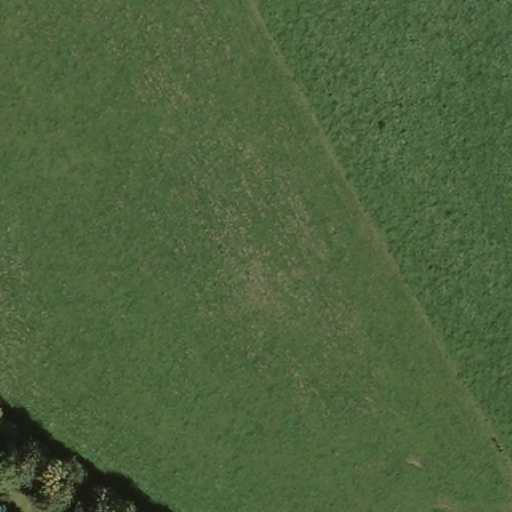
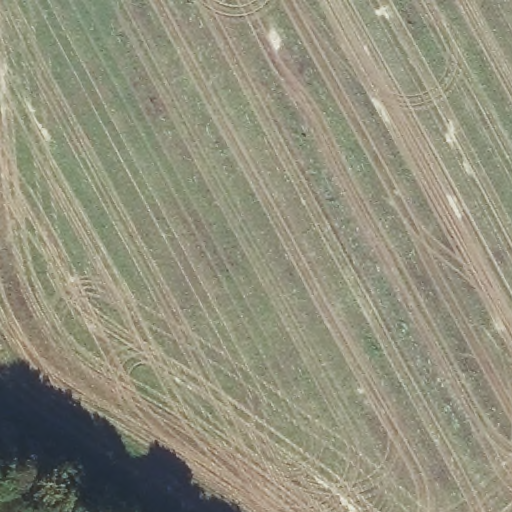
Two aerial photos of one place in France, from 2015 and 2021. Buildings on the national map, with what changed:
[]

